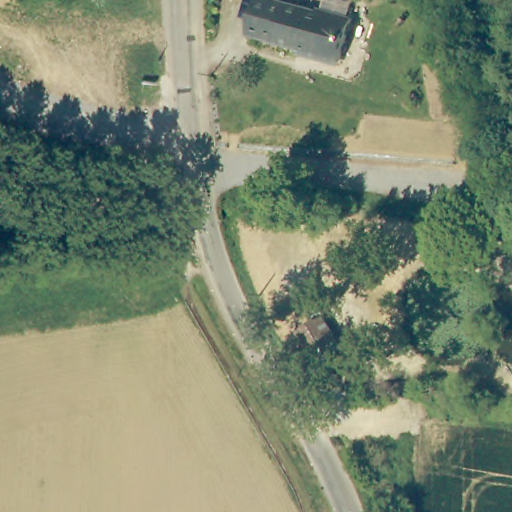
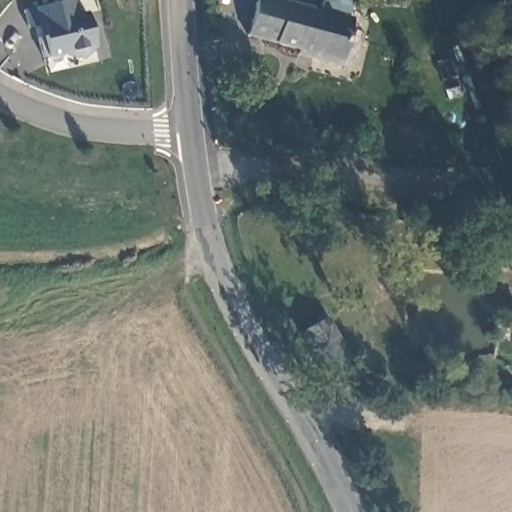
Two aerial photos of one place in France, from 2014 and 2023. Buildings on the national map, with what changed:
new [(88,11),(96,45),(83,60),(60,55),(47,57),(47,56),(42,57),(37,38),(44,36),(42,23),(28,31),(23,9),(69,0),(74,0),(77,14),(88,11)]
unchanged [(358,20),(345,64),(322,57),(318,62),(302,58),(304,53),(252,39),(262,0),(271,0),(325,14),(327,12),(358,20)]
unchanged [(322,371),(298,322),(323,309),(348,359),(322,371)]

